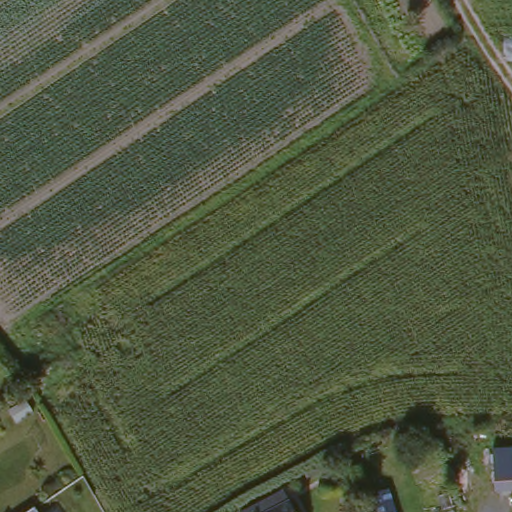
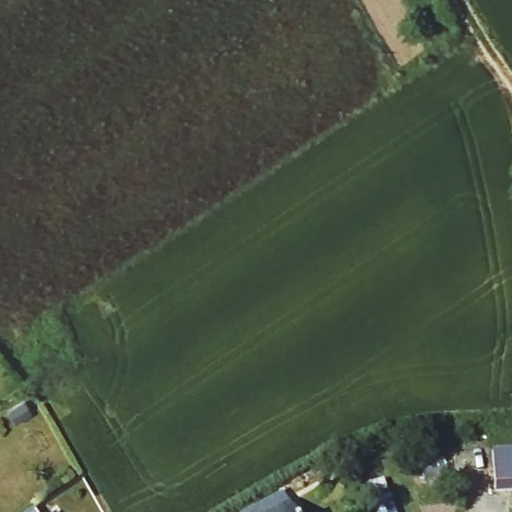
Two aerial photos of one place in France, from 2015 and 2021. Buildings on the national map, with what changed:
unchanged [(512,494),(497,495),(490,496),(489,455),(512,454),(512,494)]
unchanged [(274,503),(279,500),(286,512),(233,512),(268,492),(274,503)]
unchanged [(26,512),(27,511),(27,512),(26,512)]

